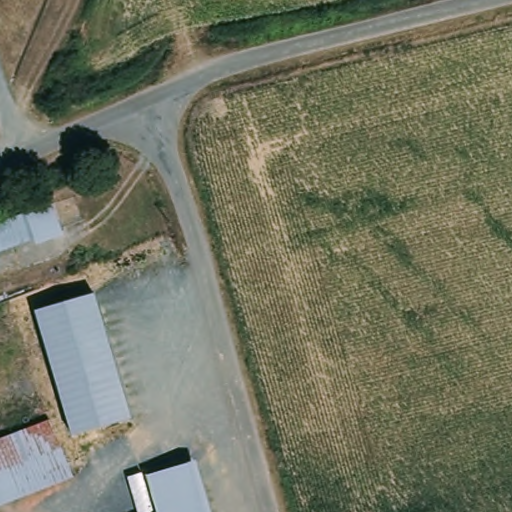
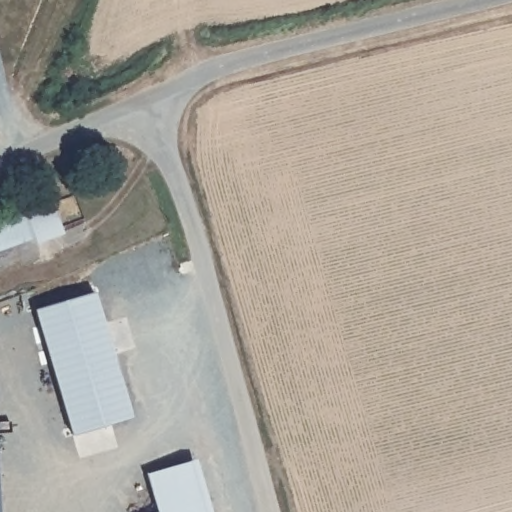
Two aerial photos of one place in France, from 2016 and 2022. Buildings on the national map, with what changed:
unchanged [(76,232),(0,256),(0,226),(67,204),(76,232)]
unchanged [(95,294),(134,420),(69,437),(33,312),(95,294)]
demolished [(0,510),(0,442),(51,422),(78,484),(0,510)]
unchanged [(214,512),(159,512),(147,477),(198,462),(214,512)]

